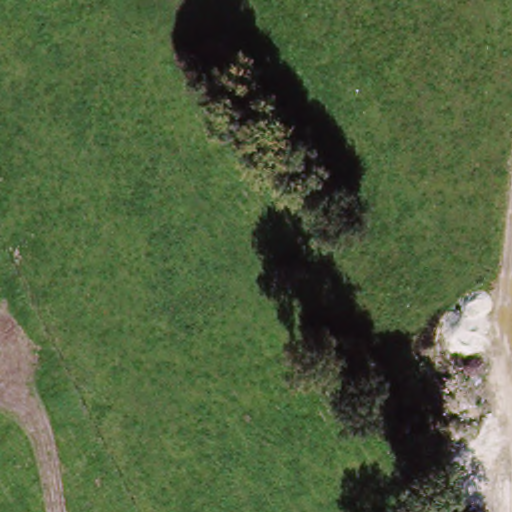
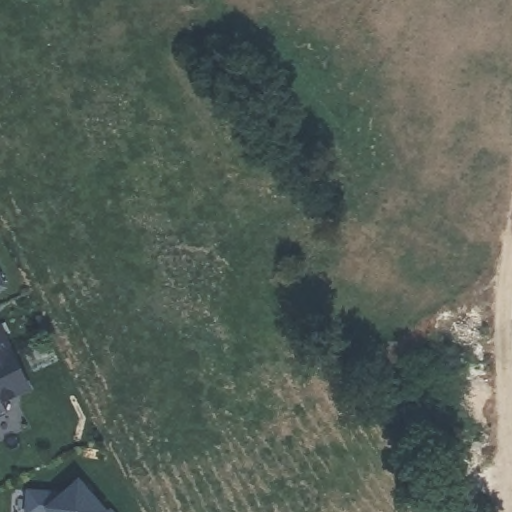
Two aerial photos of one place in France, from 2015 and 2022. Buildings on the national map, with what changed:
new [(1,289),(0,290),(0,286),(1,289)]
new [(30,387),(2,402),(9,414),(0,418),(0,330),(30,387)]
new [(61,490),(78,476),(108,509),(110,508),(113,512),(25,512),(25,487),(61,490)]

